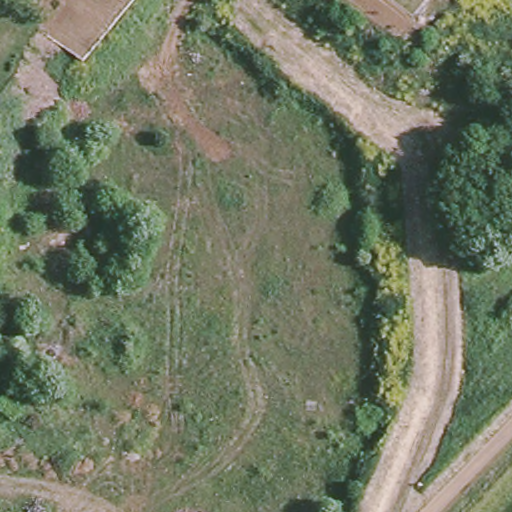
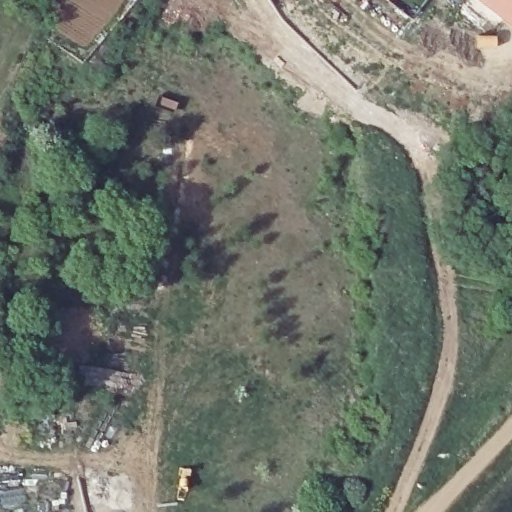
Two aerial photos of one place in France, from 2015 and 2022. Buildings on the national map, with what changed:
new [(512,0),(512,27),(476,0),(512,0)]

